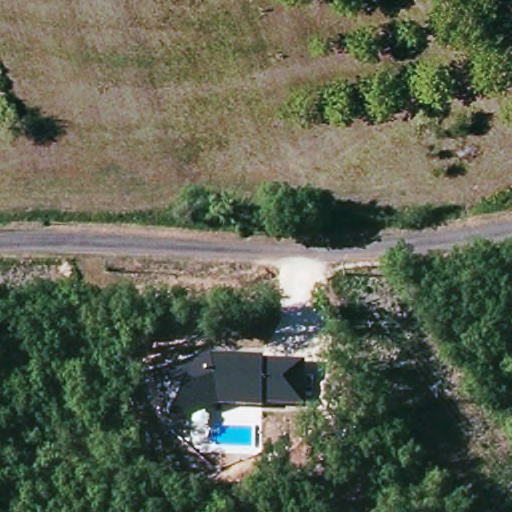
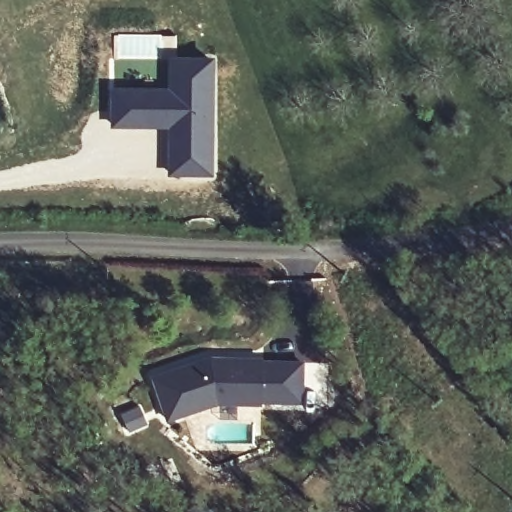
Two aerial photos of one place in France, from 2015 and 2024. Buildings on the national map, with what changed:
new [(110,85),(166,85),(167,55),(216,56),(215,177),(166,176),(165,129),(110,129),(110,85)]
unchanged [(305,361),(304,403),(261,400),(262,405),(217,405),(169,420),(152,376),(212,356),(264,357),(263,361),(305,361)]

